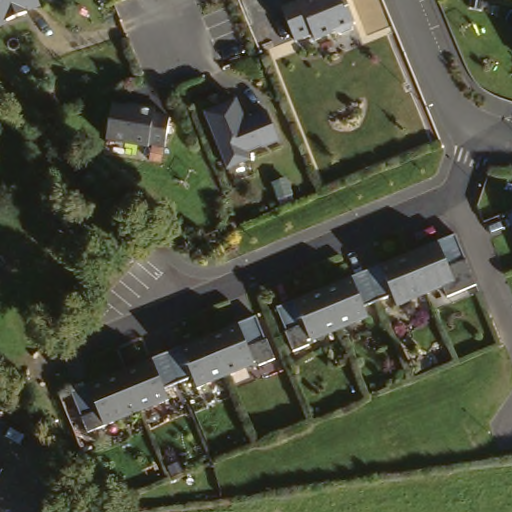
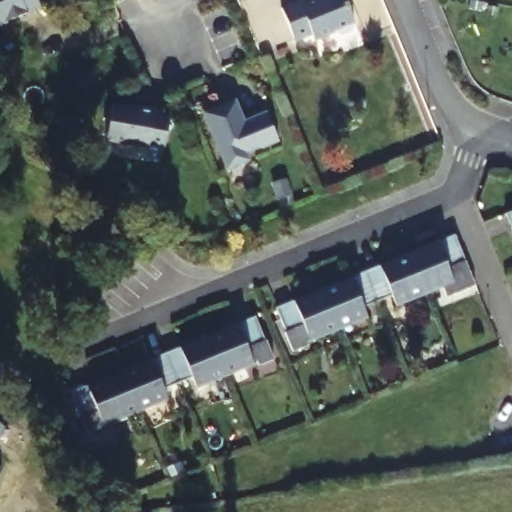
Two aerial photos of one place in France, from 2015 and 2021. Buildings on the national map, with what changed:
unchanged [(23,16),(23,17),(0,26),(0,0),(32,0),(36,10),(23,16)]
unchanged [(351,23),(349,30),(337,34),(330,32),(311,40),(309,34),(292,41),(278,8),(295,1),(295,0),(342,0),(351,23)]
unchanged [(232,98),(242,121),(247,119),(246,116),(263,110),(274,139),(258,146),(257,144),(242,150),(246,158),(224,167),(201,111),(232,98)]
unchanged [(133,113),(134,110),(151,113),(150,118),(166,121),(161,151),(145,148),(144,150),(103,143),(109,109),(133,113)]
unchanged [(506,214),(512,211),(512,230),(506,214)]
unchanged [(369,314),(357,318),(356,315),(321,330),(322,330),(307,336),(309,341),(293,347),(285,328),(286,327),(276,303),(306,291),(308,295),(343,281),(341,277),(391,256),(393,260),(428,246),(426,242),(455,230),(476,281),(448,293),(442,280),(408,294),(409,297),(397,302),(393,291),(364,303),(369,314)]
unchanged [(138,368),(137,364),(186,343),(188,348),(224,333),(222,329),(251,317),(261,341),(262,340),(270,360),(254,366),(253,362),(238,368),(238,367),(203,381),(204,384),(193,389),(188,378),(159,390),(164,400),(153,405),(152,403),(117,417),(118,417),(109,421),(109,423),(83,434),(66,393),(97,380),(99,384),(138,368)]
unchanged [(0,470),(0,463),(3,465),(0,470)]

